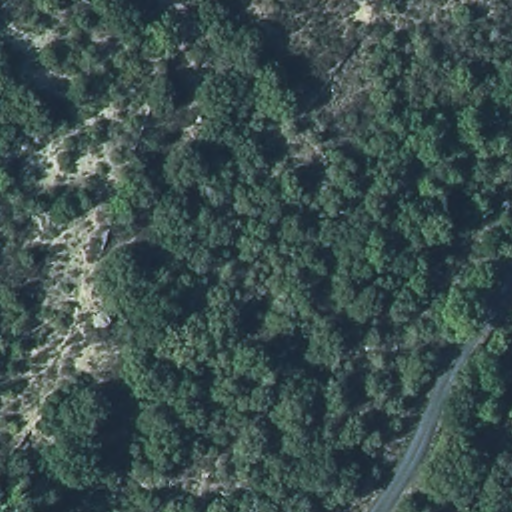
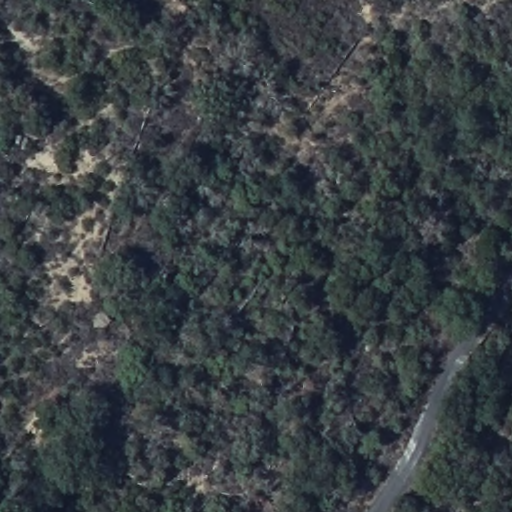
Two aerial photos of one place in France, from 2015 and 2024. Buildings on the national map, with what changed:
[]

